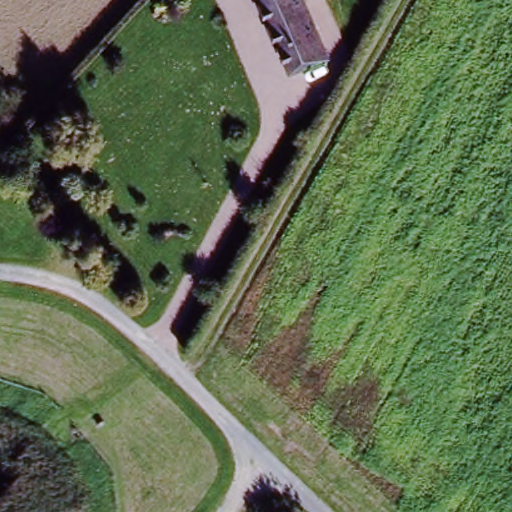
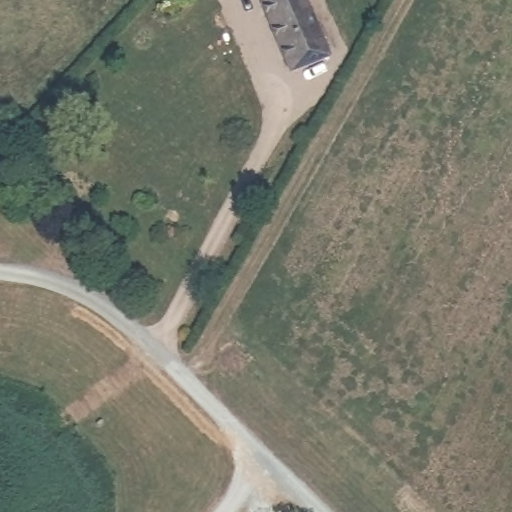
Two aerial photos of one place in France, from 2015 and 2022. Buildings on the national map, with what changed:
unchanged [(297,89),(282,55),(262,0),(300,0),(330,71),(297,89)]

